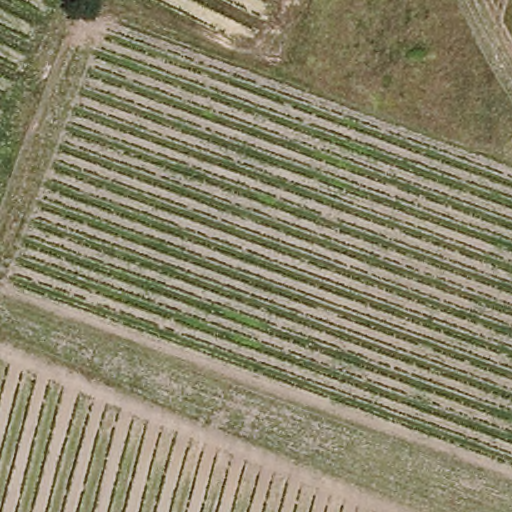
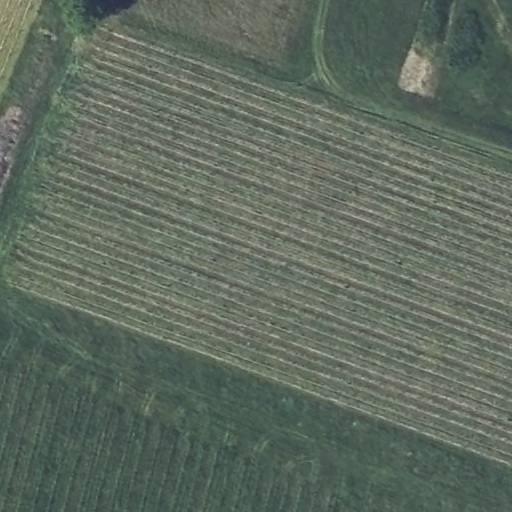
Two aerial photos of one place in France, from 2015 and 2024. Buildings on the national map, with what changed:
[]

